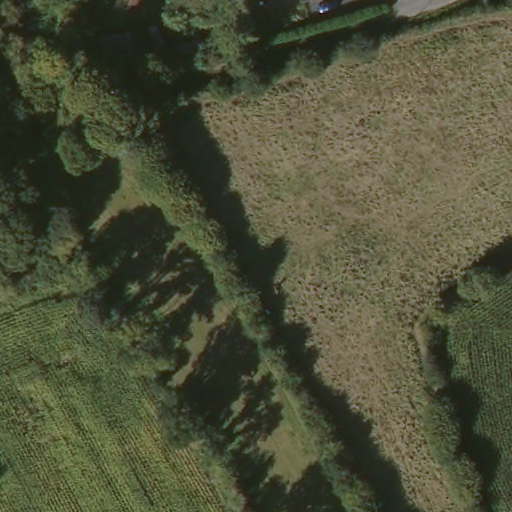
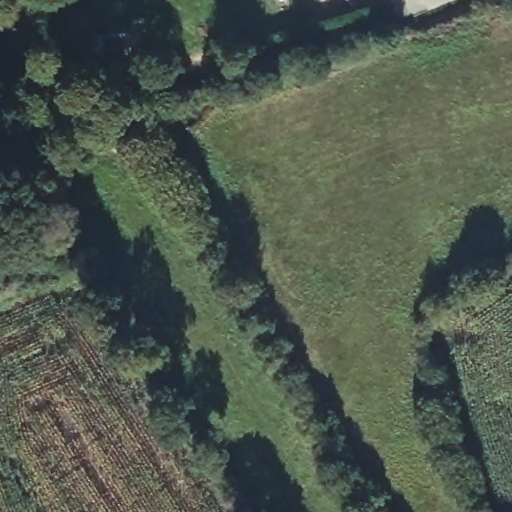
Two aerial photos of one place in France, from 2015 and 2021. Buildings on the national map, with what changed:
unchanged [(235,2),(234,0),(239,0),(235,2)]
unchanged [(298,4),(297,0),(309,0),(298,4)]
unchanged [(132,58),(105,69),(97,42),(123,33),(132,58)]

